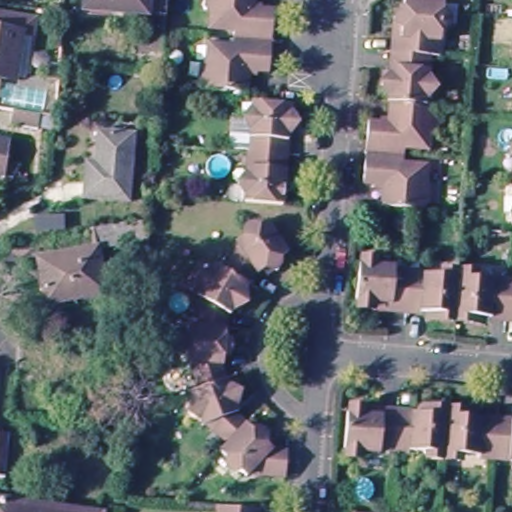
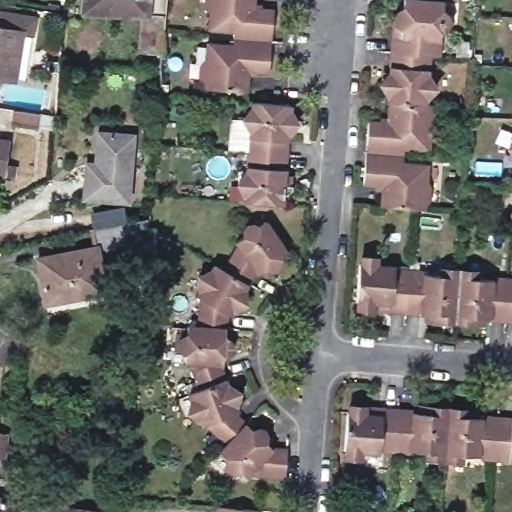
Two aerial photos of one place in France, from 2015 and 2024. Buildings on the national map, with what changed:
unchanged [(160,52),(134,50),(136,21),(85,17),(86,0),(164,0),(160,52)]
unchanged [(207,45),(232,46),(233,36),(207,34),(209,0),(260,0),(260,7),(273,9),(268,78),(250,76),(249,95),(202,92),(207,45)]
unchanged [(375,192),(357,191),(362,123),(380,124),(385,56),(396,56),(400,2),(437,5),(433,61),(428,60),(416,214),(374,211),(375,192)]
unchanged [(38,15),(36,31),(22,29),(15,75),(0,73),(0,9),(38,15)]
unchanged [(291,106),(283,208),(242,204),(251,104),(291,106)]
unchanged [(43,132),(8,126),(11,111),(46,117),(43,132)]
unchanged [(84,165),(92,167),(94,134),(132,139),(129,204),(82,200),(84,165)]
unchanged [(12,147),(7,181),(0,180),(0,145),(12,147)]
unchanged [(265,438),(268,442),(284,443),(282,470),(248,466),(245,470),(216,446),(224,437),(202,419),(198,420),(185,387),(194,383),(184,356),(181,356),(184,320),(194,321),(197,292),(193,291),(213,260),(223,266),(237,243),(235,236),(267,219),(286,253),(269,262),(272,267),(262,273),(259,267),(255,270),(252,267),(234,296),(239,300),(234,309),(228,305),(224,311),(222,310),(221,332),(229,332),(227,350),(219,350),(219,359),(214,358),(227,391),(234,388),(239,398),(232,400),(234,407),(231,408),(257,431),(261,426),(269,433),(265,438)]
unchanged [(147,222),(146,247),(95,256),(91,232),(147,222)]
unchanged [(62,304),(45,306),(36,266),(95,256),(101,290),(102,298),(62,304)]
unchanged [(467,326),(452,325),(452,318),(447,318),(447,325),(432,323),(432,317),(386,313),(369,311),(368,314),(354,312),(355,305),(353,304),(356,267),(358,267),(358,262),(374,263),(373,269),(391,271),(390,275),(512,286),(512,324),(468,320),(467,326)]
unchanged [(96,424),(98,407),(132,411),(132,429),(96,424)]
unchanged [(505,462),(376,452),(376,455),(358,455),(358,460),(342,460),(342,453),(341,453),(345,415),(346,415),(346,409),(361,410),(361,412),(377,413),(425,417),(424,410),(441,412),(441,418),(444,419),(444,412),(460,415),(460,420),(481,422),(512,424),(512,466),(505,465),(505,462)]
unchanged [(12,431),(7,473),(0,473),(0,429),(12,431)]
unchanged [(106,511),(106,512),(0,512),(0,493),(106,511)]
unchanged [(253,512),(221,512),(221,509),(253,512)]

